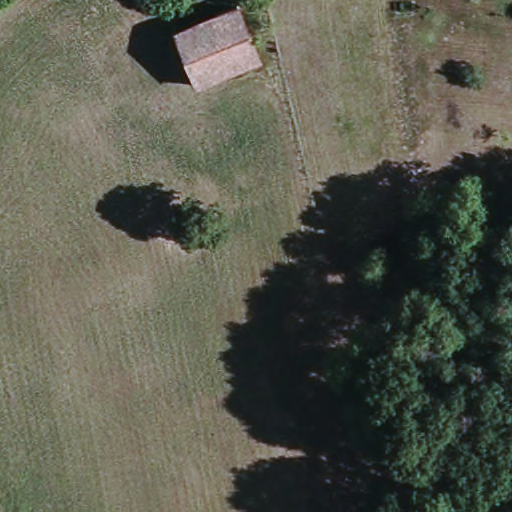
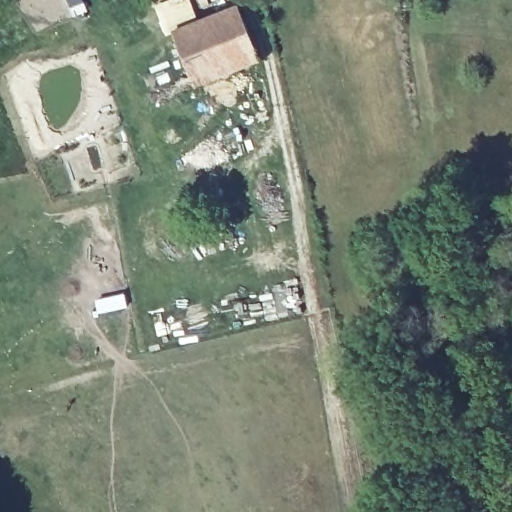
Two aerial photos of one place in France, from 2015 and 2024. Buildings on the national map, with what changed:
unchanged [(227,5),(253,55),(193,85),(167,34),(227,5)]

